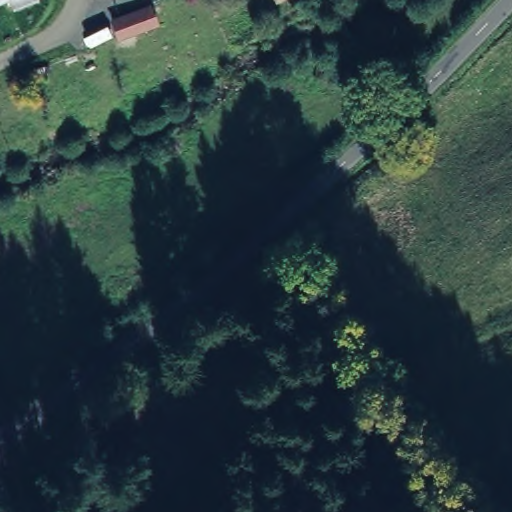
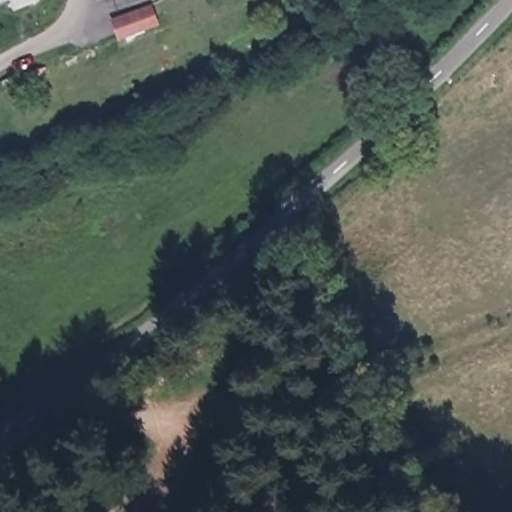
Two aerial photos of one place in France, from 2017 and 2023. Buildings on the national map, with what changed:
unchanged [(0,0),(37,0),(0,12),(0,0)]
unchanged [(145,26),(122,36),(117,20),(115,15),(140,7),(140,10),(145,26)]

